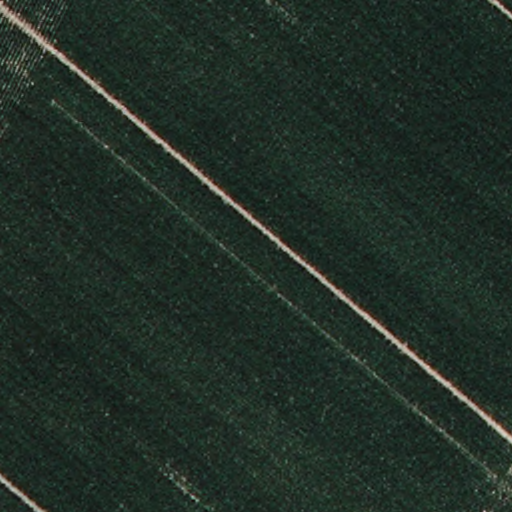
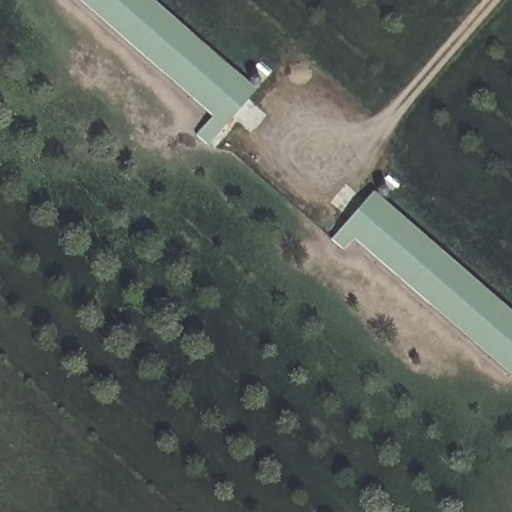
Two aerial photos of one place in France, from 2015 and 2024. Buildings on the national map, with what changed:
new [(210,116),(78,0),(154,0),(255,90),(207,145),(195,136),(210,116)]
new [(352,240),(343,250),(330,239),(372,192),(512,311),(512,374),(510,376),(352,240)]

